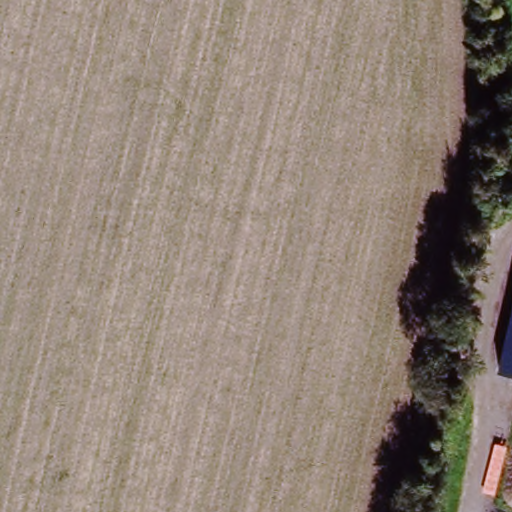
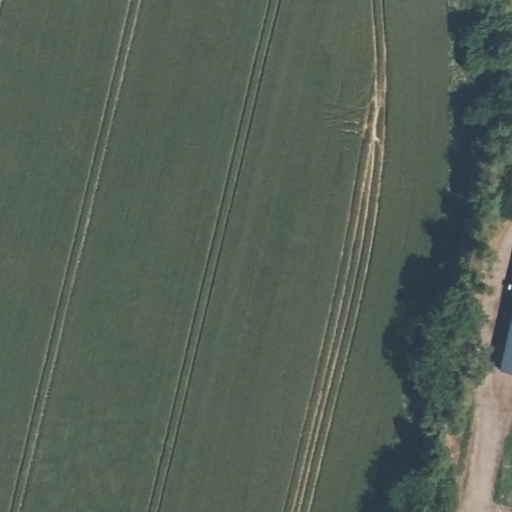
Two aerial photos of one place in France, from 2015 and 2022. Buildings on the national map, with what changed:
unchanged [(503,372),(512,335),(512,374),(503,372)]

